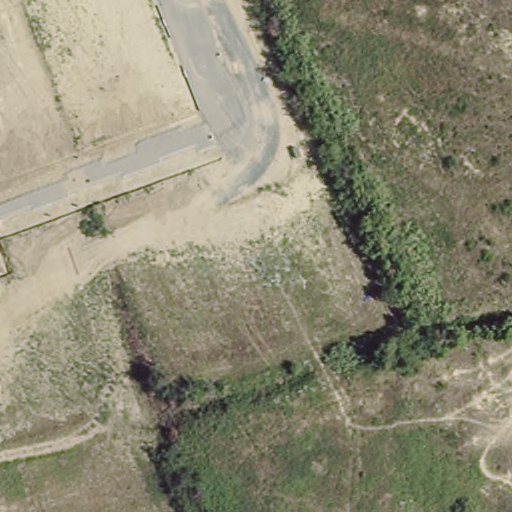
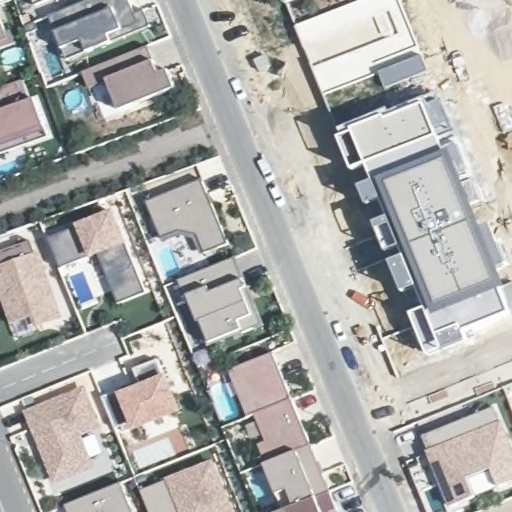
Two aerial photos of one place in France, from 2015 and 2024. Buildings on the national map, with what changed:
new [(40,0),(55,0),(42,5),(40,0)]
new [(129,0),(135,14),(145,11),(151,27),(68,62),(50,17),(92,0),(129,0)]
new [(293,0),(286,2),(285,0),(293,0)]
new [(8,40),(0,43),(0,18),(8,40)]
new [(90,89),(83,74),(148,47),(160,75),(169,71),(176,89),(121,112),(102,119),(90,89)]
new [(419,50),(427,71),(385,89),(377,72),(376,69),(419,50)]
new [(31,101),(37,99),(46,125),(50,137),(0,156),(0,89),(23,80),(31,101)]
new [(467,170),(463,171),(483,227),(488,225),(506,264),(500,267),(507,285),(512,283),(512,314),(466,335),(469,341),(430,358),(411,314),(358,184),(338,130),(378,114),(427,97),(428,100),(440,97),(453,128),(444,132),(442,127),(438,128),(445,147),(457,142),(467,170)]
new [(203,179),(230,244),(200,255),(197,246),(172,236),(163,240),(147,202),(203,179)]
new [(113,208),(126,244),(97,256),(90,258),(75,225),(113,208)]
new [(47,234),(75,225),(89,256),(60,268),(47,234)]
new [(15,263),(10,249),(32,241),(60,318),(38,326),(40,332),(19,339),(0,287),(0,269),(15,263)]
new [(126,244),(145,292),(117,303),(97,256),(126,244)]
new [(201,322),(191,296),(186,298),(180,281),(235,258),(262,323),(218,341),(210,344),(201,322)]
new [(255,415),(248,417),(231,372),(273,355),(293,399),(255,415)]
new [(132,369),(156,359),(162,372),(181,410),(132,430),(117,393),(138,383),(132,369)]
new [(84,391),(98,427),(79,434),(92,466),(56,481),(28,413),(84,391)]
new [(293,399),(311,446),(267,464),(260,446),(267,442),(255,415),(293,399)]
new [(495,408),(512,449),(512,483),(500,488),(492,470),(468,479),(466,484),(472,499),(451,508),(440,477),(436,468),(423,437),(495,408)]
new [(284,511),(277,495),(265,465),(267,464),(311,446),(330,493),(337,510),(333,512),(283,512),(296,507),(284,511)]
new [(141,491),(212,463),(232,512),(150,512),(141,491)]
new [(66,506),(121,483),(133,512),(69,512),(66,506)]

